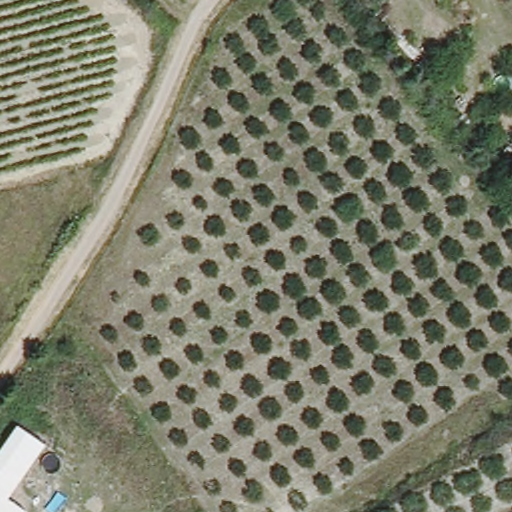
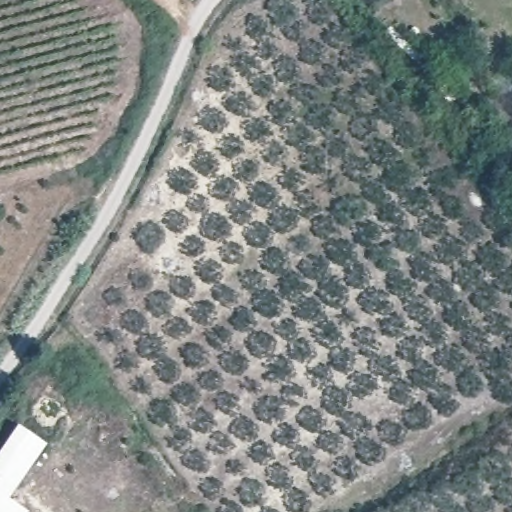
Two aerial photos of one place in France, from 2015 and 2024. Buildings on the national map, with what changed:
unchanged [(10,415),(41,439),(0,494),(0,427),(10,415)]
unchanged [(16,512),(0,512),(0,496),(16,512)]

